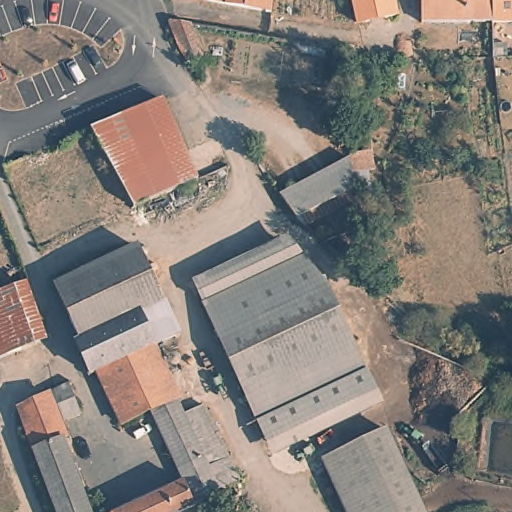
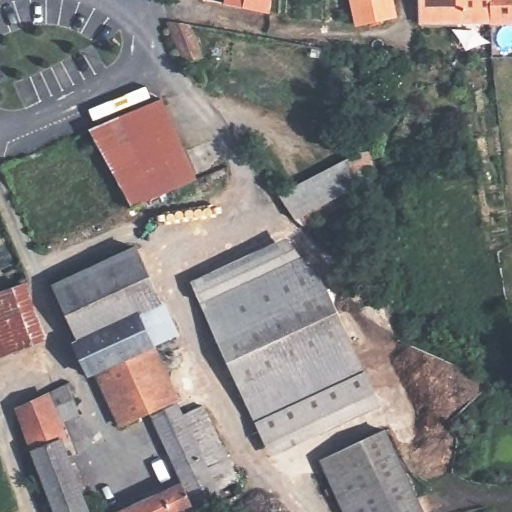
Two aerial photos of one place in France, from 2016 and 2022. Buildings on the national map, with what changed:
unchanged [(207,0),(271,0),(269,13),(207,0)]
unchanged [(388,0),(391,15),(356,25),(350,0),(388,0)]
unchanged [(423,20),(423,0),(495,0),(495,20),(423,20)]
unchanged [(495,20),(495,0),(512,0),(512,20),(495,20)]
unchanged [(201,49),(187,57),(165,19),(187,20),(201,49)]
unchanged [(134,207),(91,129),(163,94),(205,173),(134,207)]
unchanged [(276,193),(351,155),(374,155),(377,178),(356,179),(360,203),(307,232),(276,193)]
unchanged [(74,328),(55,283),(140,246),(159,292),(74,328)]
unchanged [(207,305),(305,260),(328,291),(367,374),(260,422),(207,305)]
unchanged [(0,291),(29,282),(48,338),(0,359),(0,291)]
unchanged [(159,292),(164,304),(143,314),(148,324),(182,395),(180,397),(156,409),(125,423),(99,369),(91,373),(90,369),(77,342),(80,340),(74,328),(159,292)]
unchanged [(383,409),(275,457),(260,422),(367,374),(383,409)]
unchanged [(59,387),(66,409),(55,415),(70,452),(61,456),(84,512),(59,512),(20,408),(49,396),(47,393),(59,387)]
unchanged [(192,477),(186,462),(184,464),(156,409),(180,397),(188,414),(210,402),(224,430),(201,441),(208,454),(229,444),(239,464),(218,475),(225,488),(216,492),(195,501),(197,506),(183,512),(115,512),(192,477)]
unchanged [(425,512),(347,512),(328,469),(394,441),(425,512)]
unchanged [(200,512),(183,512),(197,506),(200,512)]

